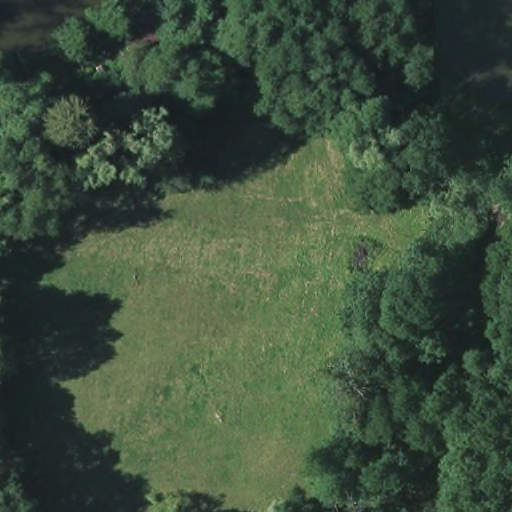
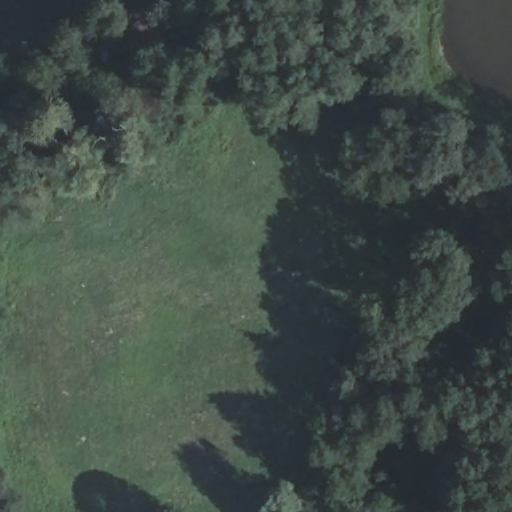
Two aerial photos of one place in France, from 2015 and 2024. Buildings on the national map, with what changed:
unchanged [(136,26),(148,19),(157,35),(144,41),(136,26)]

